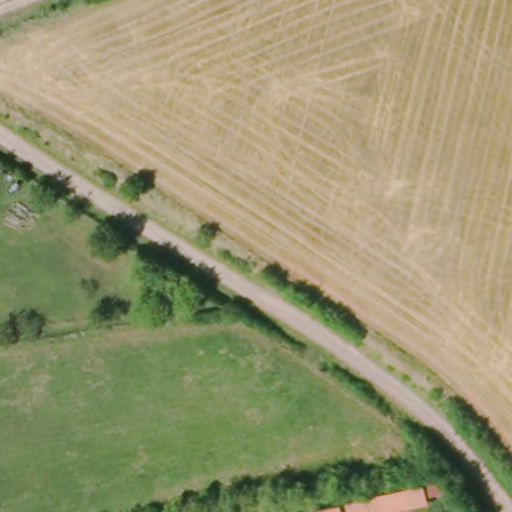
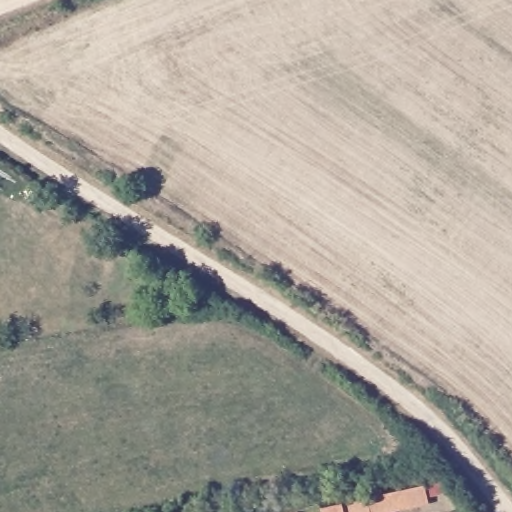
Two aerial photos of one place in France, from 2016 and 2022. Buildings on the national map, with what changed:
unchanged [(369,499),(425,488),(430,506),(399,512),(372,512),(369,499)]
unchanged [(369,499),(372,512),(325,512),(324,509),(369,499)]

